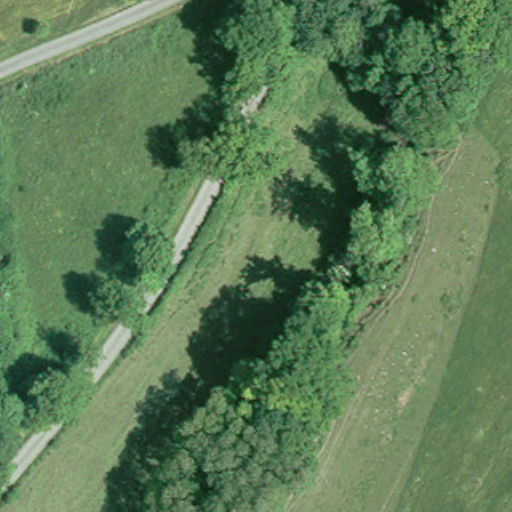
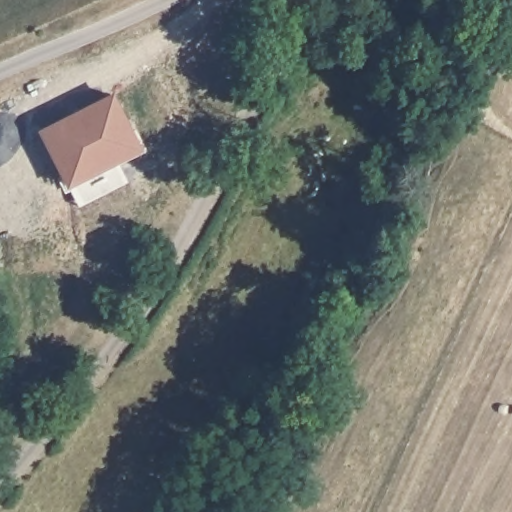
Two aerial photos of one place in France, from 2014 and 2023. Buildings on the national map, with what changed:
new [(140,146),(68,184),(40,130),(112,93),(140,146)]

